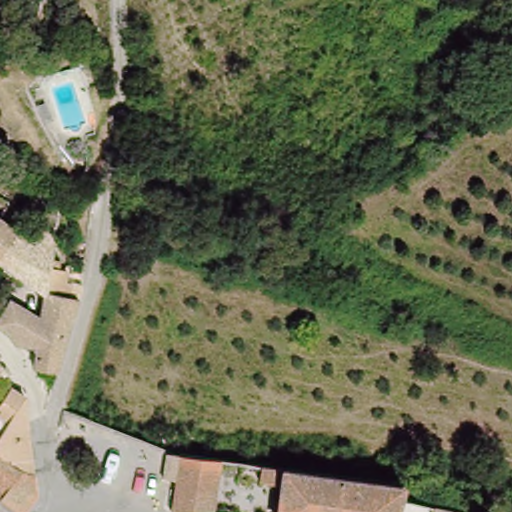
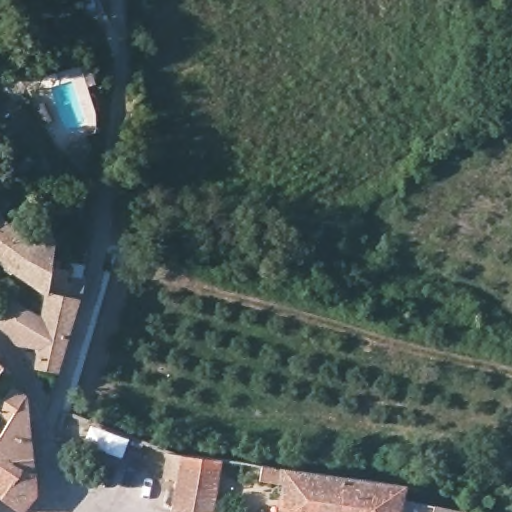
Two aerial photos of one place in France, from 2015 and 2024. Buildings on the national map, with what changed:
unchanged [(50,262),(45,297),(0,267),(0,223),(30,248),(43,231),(52,246),(51,258),(50,262)]
unchanged [(78,303),(67,338),(54,381),(38,379),(34,373),(37,354),(36,354),(40,324),(45,297),(50,262),(60,264),(59,272),(82,277),(78,303)]
unchanged [(15,342),(12,337),(9,334),(5,331),(0,330),(0,300),(40,324),(36,354),(17,347),(17,346),(15,342)]
unchanged [(20,509),(0,493),(0,427),(7,415),(0,410),(0,394),(10,381),(24,391),(27,415),(32,463),(35,489),(20,509)]
unchanged [(181,512),(170,506),(179,454),(221,460),(213,512),(181,512)]
unchanged [(400,499),(397,512),(277,512),(279,483),(259,481),(261,465),(352,478),(403,485),(400,499)]
unchanged [(397,512),(400,499),(431,507),(430,512),(397,512)]
unchanged [(454,512),(430,512),(431,507),(454,512)]

